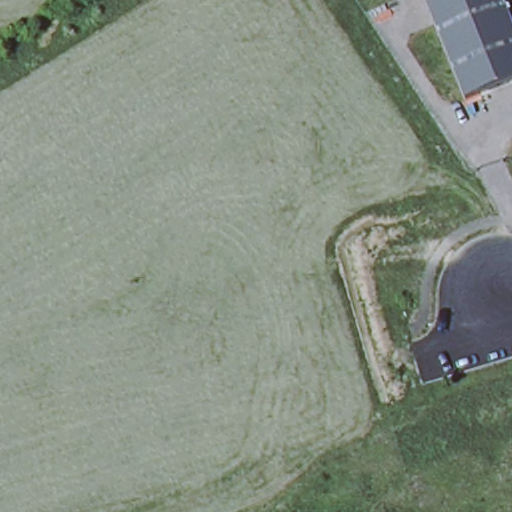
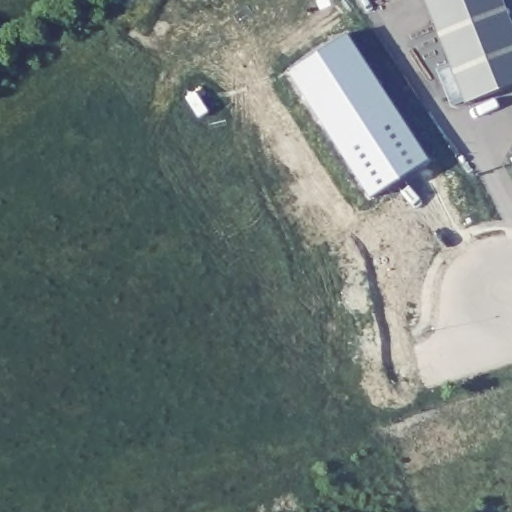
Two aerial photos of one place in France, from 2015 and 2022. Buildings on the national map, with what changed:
unchanged [(512,17),(512,84),(466,102),(426,0),(505,0),(512,17)]
new [(346,34),(429,160),(370,199),(289,74),(346,34)]

